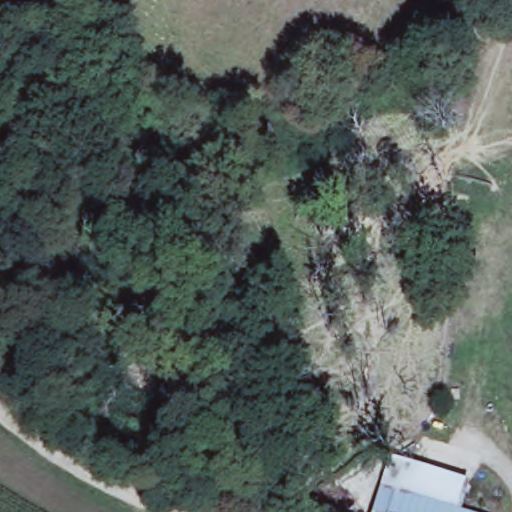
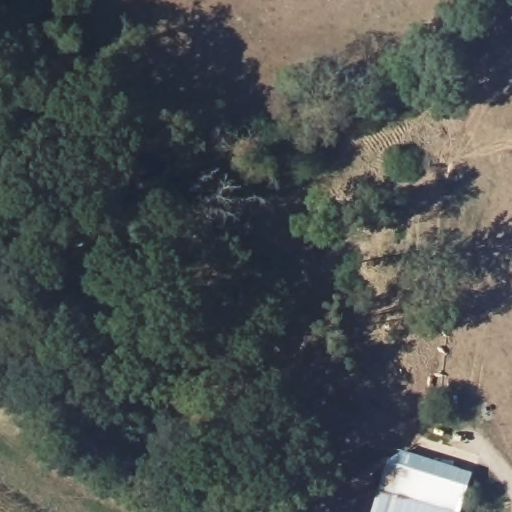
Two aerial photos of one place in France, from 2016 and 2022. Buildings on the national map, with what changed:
unchanged [(378,458),(466,484),(458,510),(463,512),(362,512),(378,458)]

